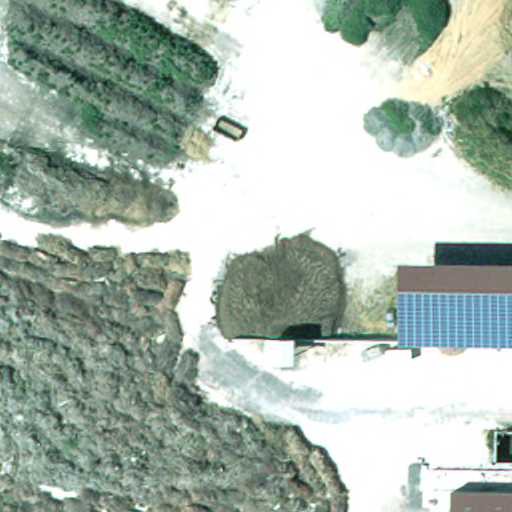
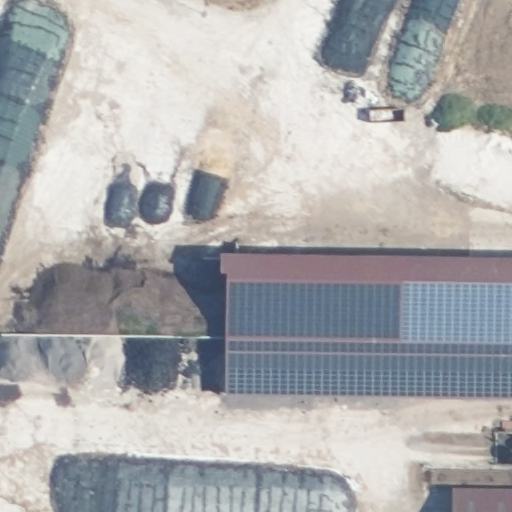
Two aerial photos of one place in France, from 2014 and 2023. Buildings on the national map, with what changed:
new [(400,343),(225,340),(227,280),(220,280),(220,255),(402,257),(400,343)]
unchanged [(402,257),(512,259),(512,344),(400,343),(402,257)]
new [(400,343),(499,345),(512,345),(512,401),(223,397),(225,340),(400,343)]
unchanged [(512,489),(512,512),(452,512),(452,488),(512,489)]

